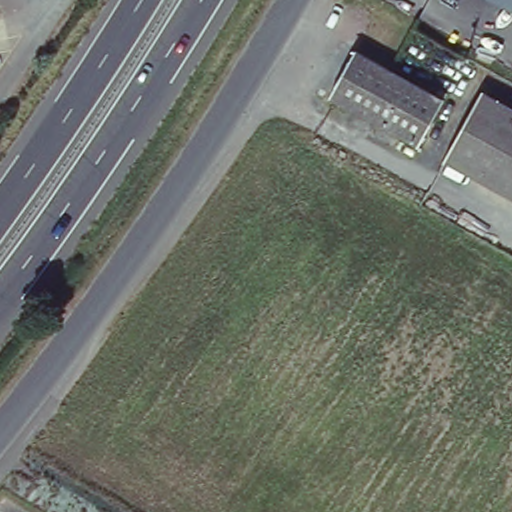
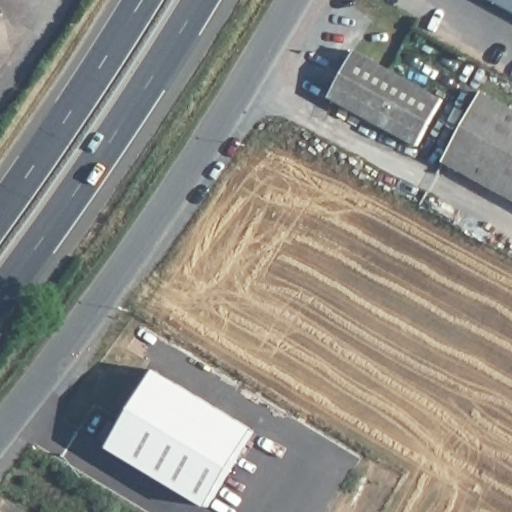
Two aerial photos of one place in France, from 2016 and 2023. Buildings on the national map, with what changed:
unchanged [(483,0),(512,0),(512,15),(483,0)]
unchanged [(355,60),(443,109),(418,155),(329,105),(355,60)]
unchanged [(480,97),(512,115),(512,202),(443,164),(480,97)]
new [(265,438),(220,512),(212,512),(111,452),(159,376),(265,438)]

